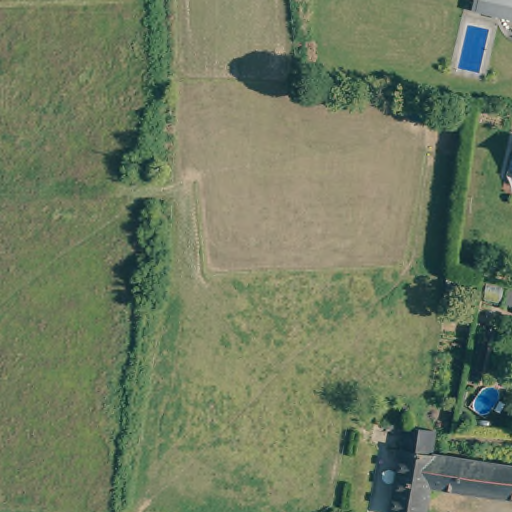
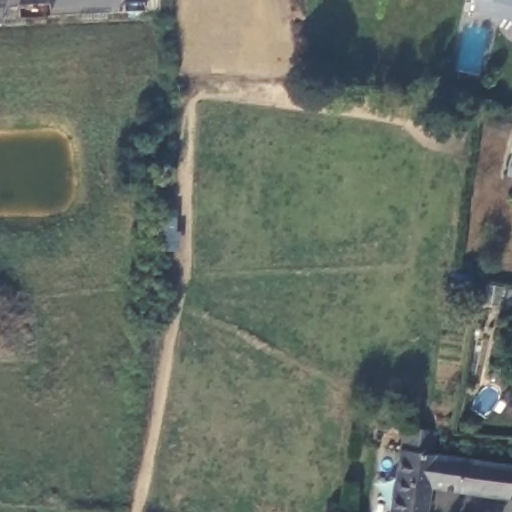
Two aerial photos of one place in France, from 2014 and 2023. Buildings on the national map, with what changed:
unchanged [(485,0),(512,0),(512,19),(482,12),(485,0)]
unchanged [(425,491),(422,512),(386,512),(400,431),(432,436),(428,460),(431,460),(426,491),(425,491)]
unchanged [(426,491),(431,460),(490,468),(512,471),(512,502),(491,500),(426,491)]

